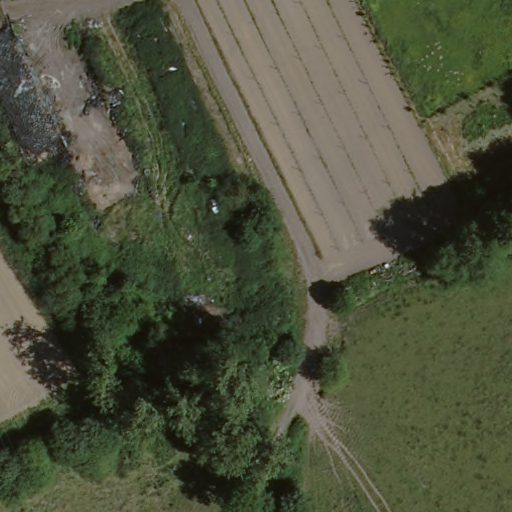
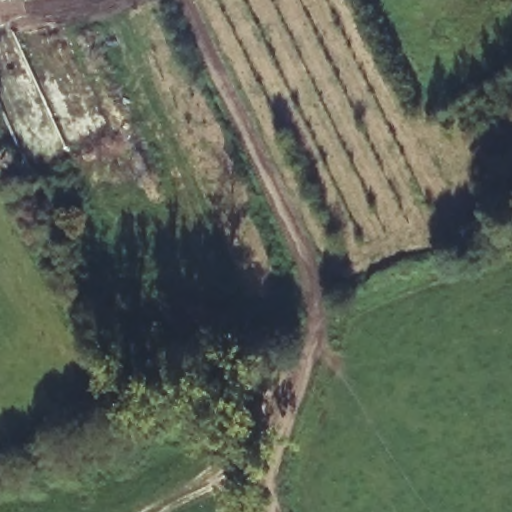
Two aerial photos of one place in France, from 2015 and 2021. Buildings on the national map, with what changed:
[]

